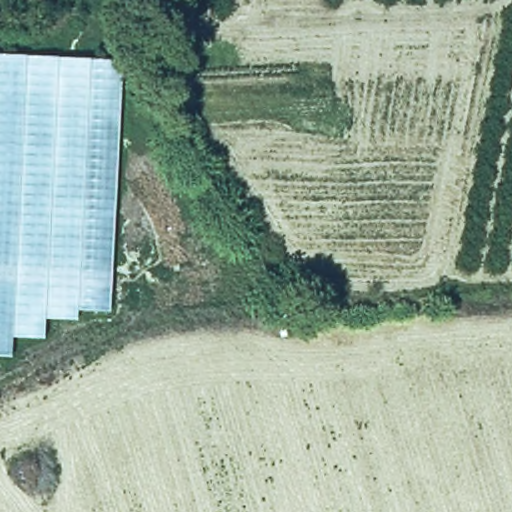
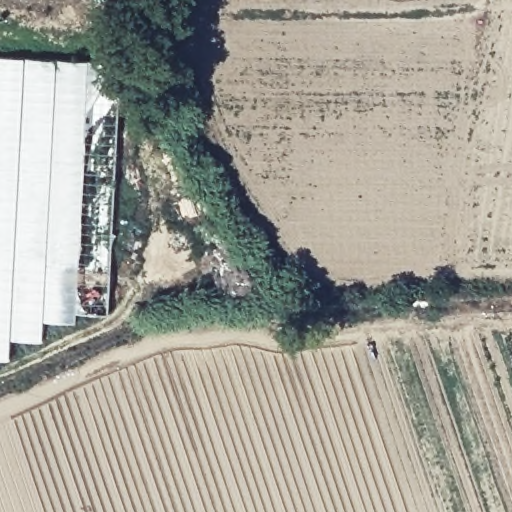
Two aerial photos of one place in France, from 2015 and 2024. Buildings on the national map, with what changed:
unchanged [(121,63),(107,311),(0,359),(0,57),(121,63)]

